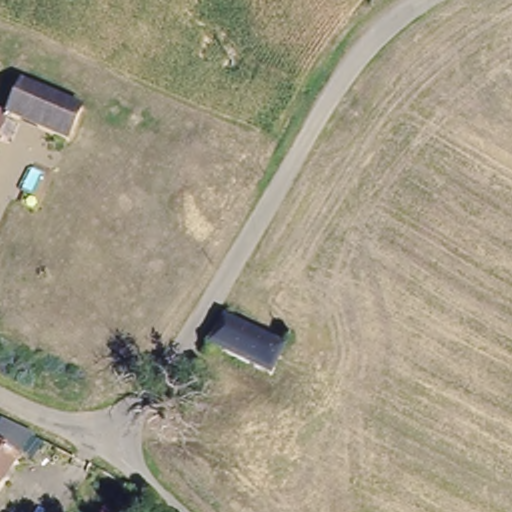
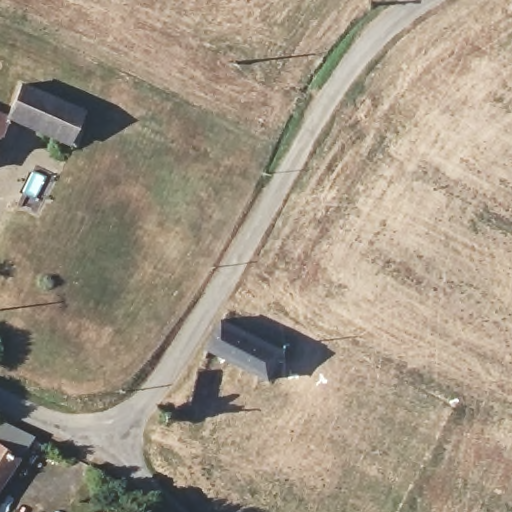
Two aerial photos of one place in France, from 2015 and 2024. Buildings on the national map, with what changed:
unchanged [(15,119),(8,130),(1,127),(0,129),(0,111),(5,114),(20,82),(80,111),(66,141),(15,119)]
unchanged [(285,344),(272,383),(206,348),(225,316),(285,344)]
unchanged [(0,482),(0,427),(28,442),(0,482)]

